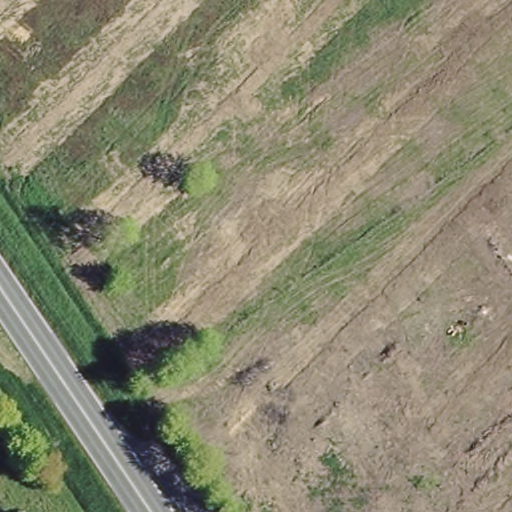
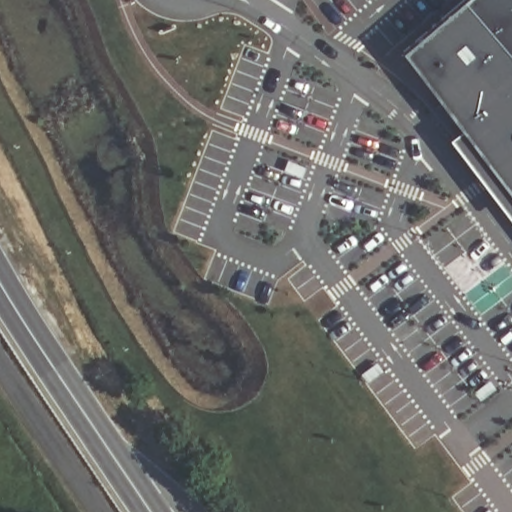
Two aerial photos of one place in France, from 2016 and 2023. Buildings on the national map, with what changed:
new [(464,127),(405,52),(465,1),(466,0),(512,0),(512,221),(449,138),(464,127)]

